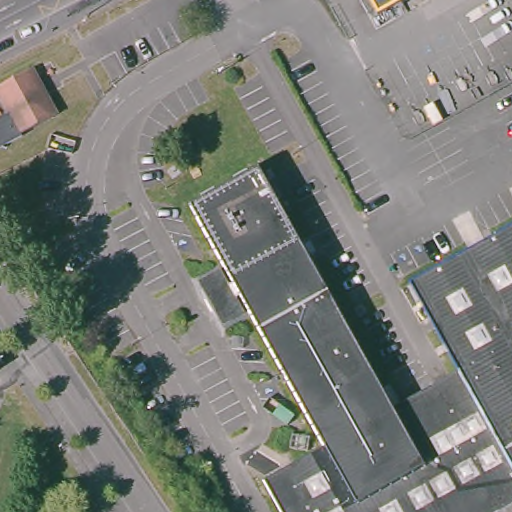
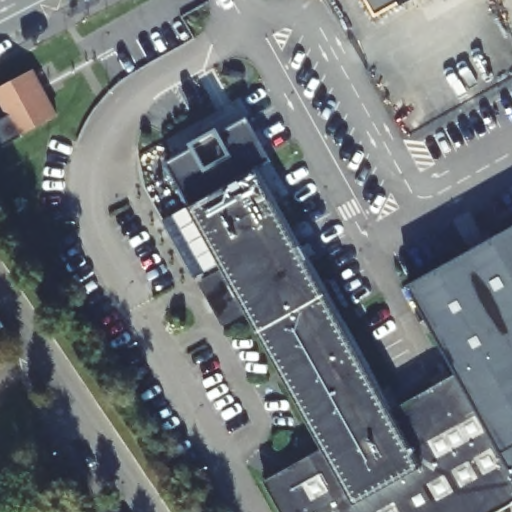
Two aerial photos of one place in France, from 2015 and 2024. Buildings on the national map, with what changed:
unchanged [(362,0),(408,0),(372,21),(362,0)]
unchanged [(0,87),(28,73),(52,119),(16,138),(0,109),(0,87)]
new [(272,158),(252,169),(195,200),(172,161),(195,149),(191,143),(219,126),(221,133),(248,116),(272,158)]
unchanged [(499,512),(278,512),(261,483),(332,444),(195,200),(252,169),(381,401),(388,413),(460,373),(410,281),(512,226),(512,505),(499,512)]
unchanged [(248,307),(226,319),(200,274),(222,261),(248,307)]

